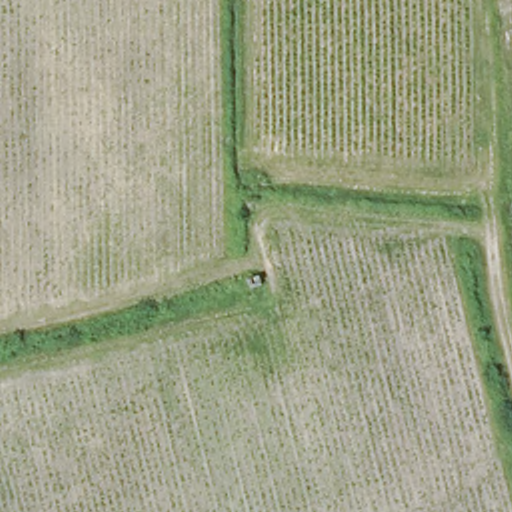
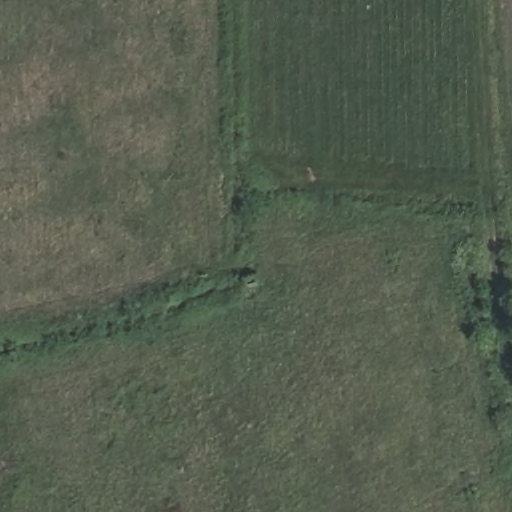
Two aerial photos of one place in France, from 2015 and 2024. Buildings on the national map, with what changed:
[]

